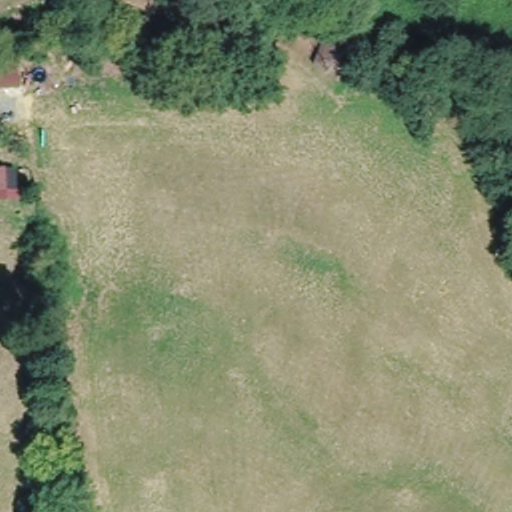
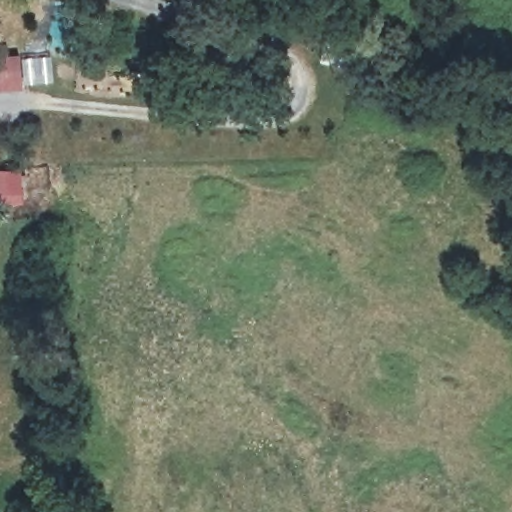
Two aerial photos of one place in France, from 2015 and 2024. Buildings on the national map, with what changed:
unchanged [(21,86),(0,88),(0,58),(16,56),(17,66),(21,86)]

